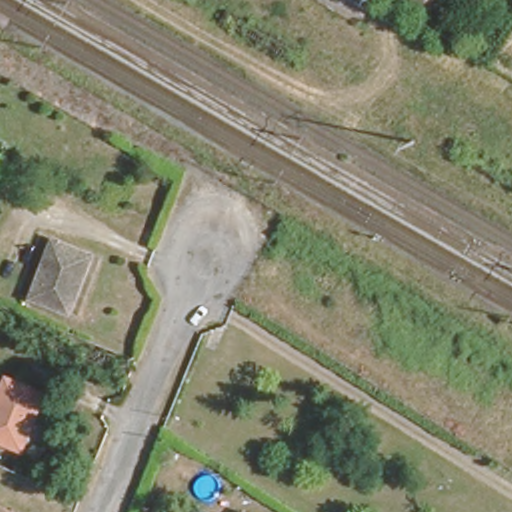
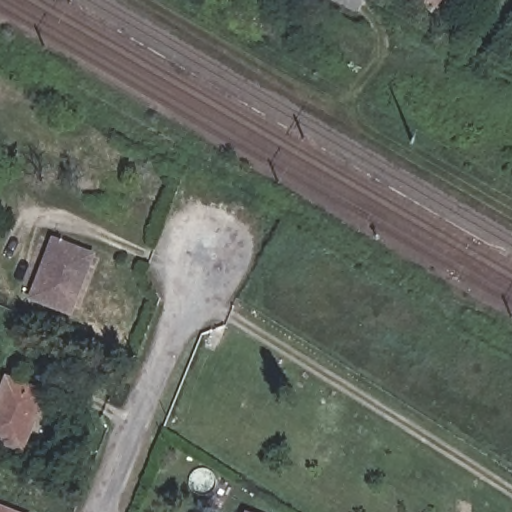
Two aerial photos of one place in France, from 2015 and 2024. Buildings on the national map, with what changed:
unchanged [(432,0),(428,5),(423,0),(432,0)]
unchanged [(29,292),(51,235),(89,250),(68,307),(29,292)]
unchanged [(0,438),(0,381),(2,375),(40,390),(18,445),(0,438)]
unchanged [(247,509),(254,512),(246,512),(247,509)]

